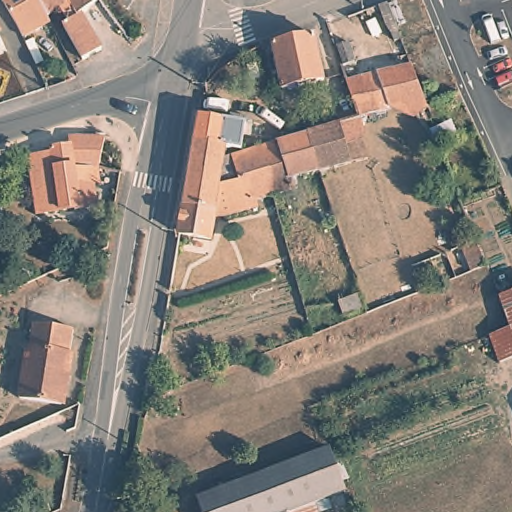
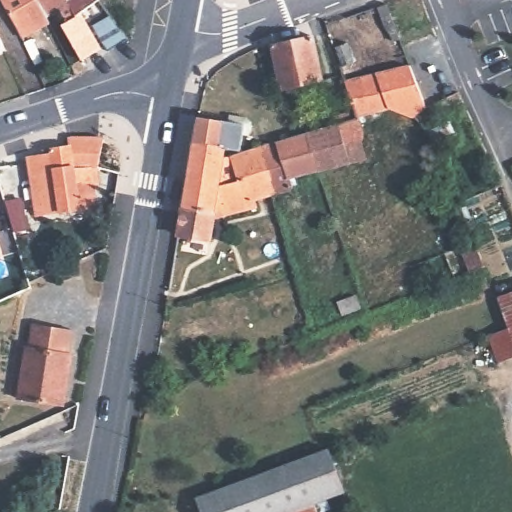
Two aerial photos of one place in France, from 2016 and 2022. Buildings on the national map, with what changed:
unchanged [(41,0),(52,19),(54,22),(25,36),(5,0),(41,0)]
unchanged [(65,11),(52,19),(41,0),(100,0),(102,3),(85,15),(105,51),(101,54),(86,63),(67,28),(72,24),(65,11)]
unchanged [(0,40),(0,35),(2,39),(0,40)]
unchanged [(322,83),(282,90),(273,46),(312,39),(322,83)]
unchanged [(443,104),(430,111),(417,118),(388,109),(376,113),(357,119),(343,78),(350,76),(353,83),(365,80),(378,78),(414,71),(423,95),(437,89),(443,104)]
unchanged [(200,120),(227,125),(229,116),(245,119),(251,124),(249,138),(242,138),(239,147),(227,149),(196,143),(200,120)]
unchanged [(307,135),(357,120),(365,139),(362,140),(369,159),(322,175),(307,135)]
unchanged [(97,180),(99,204),(42,213),(33,154),(52,151),(54,146),(73,143),(72,133),(108,132),(100,160),(76,164),(79,182),(97,180)]
unchanged [(300,182),(302,187),(297,189),(282,143),(307,135),(322,175),(300,182)]
unchanged [(196,143),(227,149),(226,160),(263,149),(278,197),(255,204),(255,209),(215,222),(211,242),(180,238),(196,143)]
unchanged [(263,149),(282,143),(297,189),(297,191),(278,197),(263,149)]
unchanged [(487,337),(510,327),(497,295),(512,291),(512,359),(498,364),(487,337)]
unchanged [(31,352),(33,353),(37,328),(77,335),(75,347),(72,360),(75,361),(66,407),(62,409),(42,406),(21,402),(31,352)]
unchanged [(197,498),(328,447),(345,489),(314,501),(318,512),(202,512),(197,498)]

